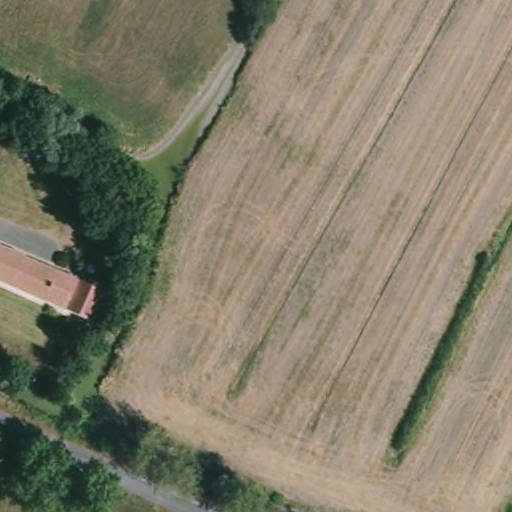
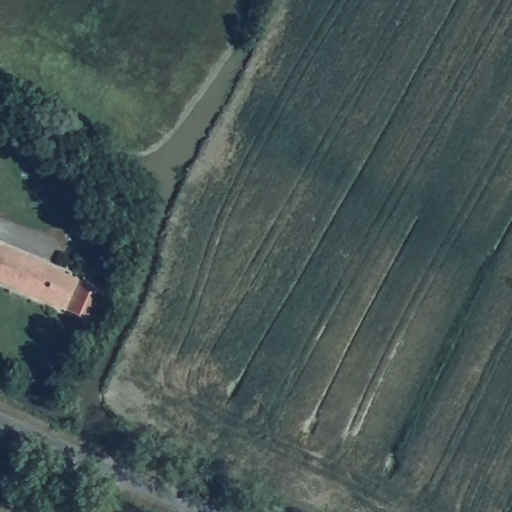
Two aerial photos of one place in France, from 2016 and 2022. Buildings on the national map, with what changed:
unchanged [(90,326),(0,286),(0,250),(104,296),(90,326)]

